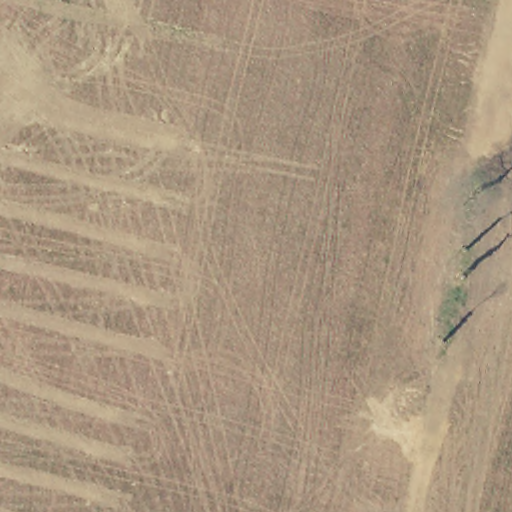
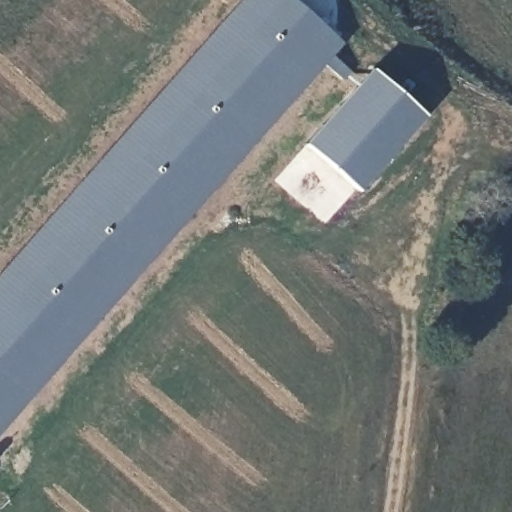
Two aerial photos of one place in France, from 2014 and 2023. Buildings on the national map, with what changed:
new [(346,70),(338,80),(319,61),(0,431),(0,267),(231,0),(290,0),(339,40),(327,53),(346,70)]
new [(359,192),(302,144),(366,66),(423,114),(359,192)]

